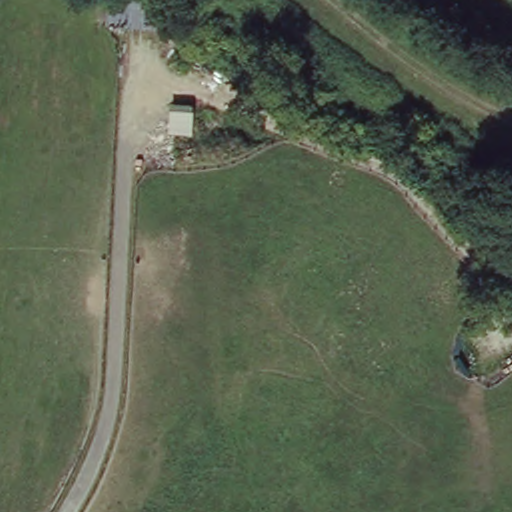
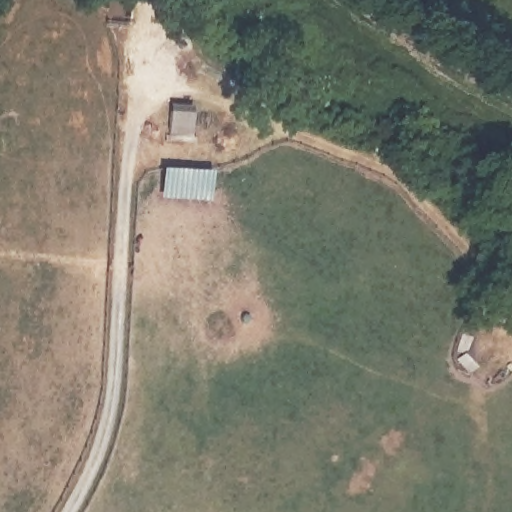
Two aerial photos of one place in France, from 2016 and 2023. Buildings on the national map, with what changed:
unchanged [(104,0),(165,0),(165,23),(104,25),(104,0)]
unchanged [(195,139),(165,136),(167,104),(196,107),(195,139)]
new [(210,173),(209,201),(160,200),(160,172),(210,173)]

